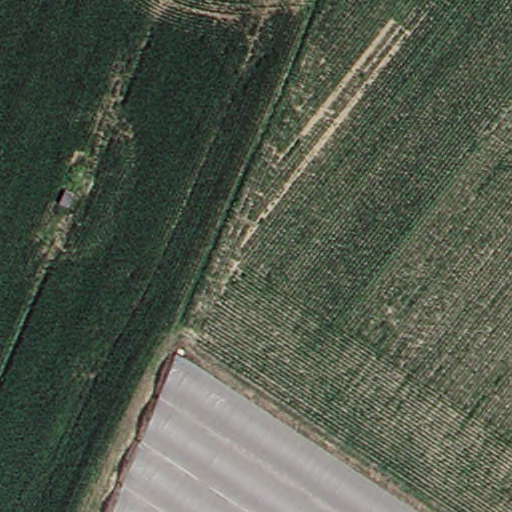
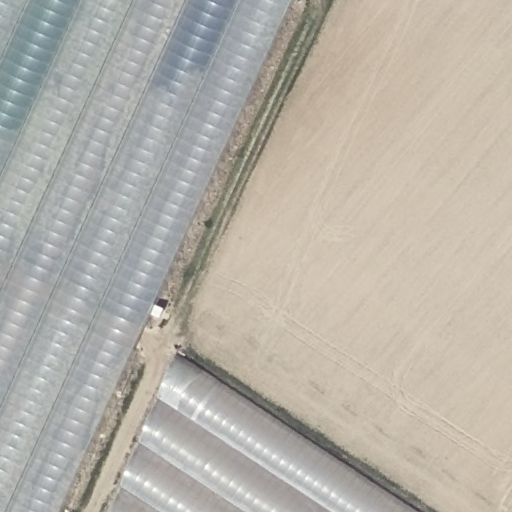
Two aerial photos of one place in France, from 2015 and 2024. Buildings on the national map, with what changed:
new [(0,0),(295,0),(63,512),(0,512),(0,0)]
unchanged [(417,512),(113,512),(178,354),(417,512)]

